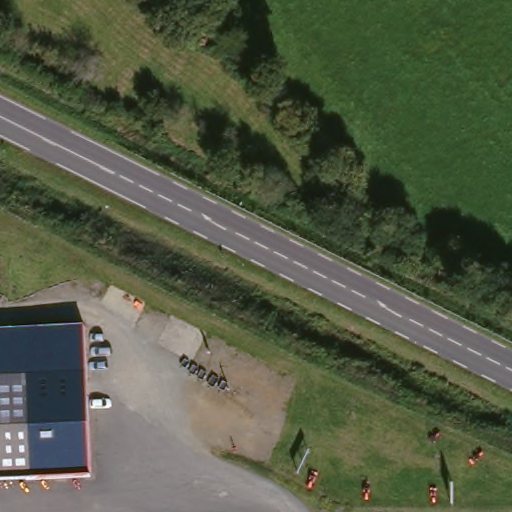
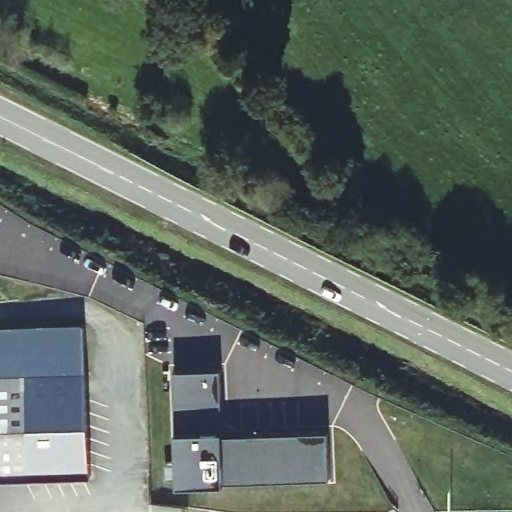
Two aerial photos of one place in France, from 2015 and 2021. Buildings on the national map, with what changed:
unchanged [(84,332),(86,412),(87,474),(0,476),(0,333),(40,332),(84,332)]
new [(224,375),(226,441),(329,438),(330,486),(179,490),(177,376),(224,375)]

